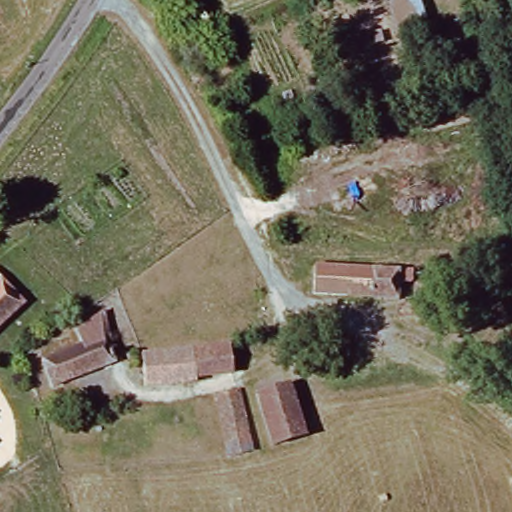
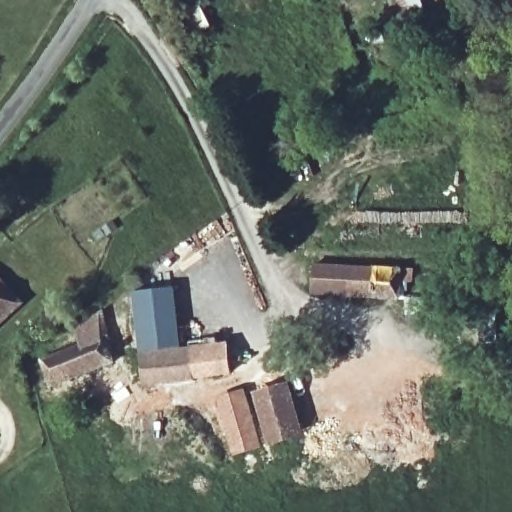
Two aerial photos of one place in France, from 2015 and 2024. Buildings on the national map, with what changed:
unchanged [(389,0),(420,0),(434,41),(403,46),(387,1),(389,0)]
unchanged [(315,275),(320,273),(408,272),(409,286),(401,286),(399,302),(362,299),(316,299),(315,275)]
unchanged [(0,331),(0,284),(24,306),(0,331)]
new [(179,353),(146,357),(140,358),(132,293),(172,289),(179,353)]
unchanged [(76,352),(74,337),(100,320),(112,372),(51,393),(40,364),(76,352)]
unchanged [(198,386),(197,390),(150,397),(146,357),(232,347),(235,380),(198,386)]
unchanged [(271,448),(257,401),(286,390),(301,439),(271,448)]
unchanged [(227,466),(212,406),(237,400),(252,458),(227,466)]

